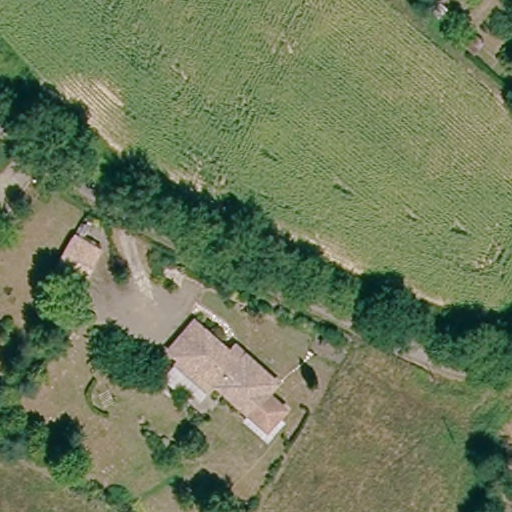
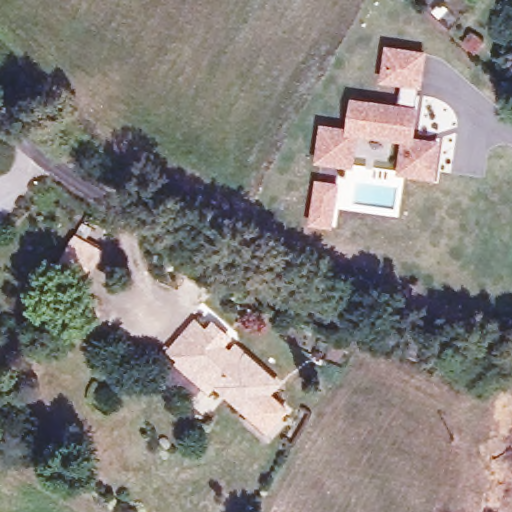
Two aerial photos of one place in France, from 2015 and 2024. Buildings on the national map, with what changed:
new [(313,162),(321,126),(347,129),(351,99),(401,104),(402,87),(380,84),(385,46),(427,53),(418,109),(415,139),(440,143),(436,181),(396,176),(400,142),(357,137),(353,168),(313,162)]
new [(339,183),(333,230),(309,226),(315,179),(339,183)]
unchanged [(75,237),(76,234),(101,250),(84,280),(59,264),(75,237)]
unchanged [(184,361),(169,347),(183,333),(197,319),(209,331),(234,356),(241,348),(276,382),(275,383),(265,393),(282,411),(263,431),(218,386),(222,382),(215,376),(205,387),(193,376),(181,365),(184,361)]

